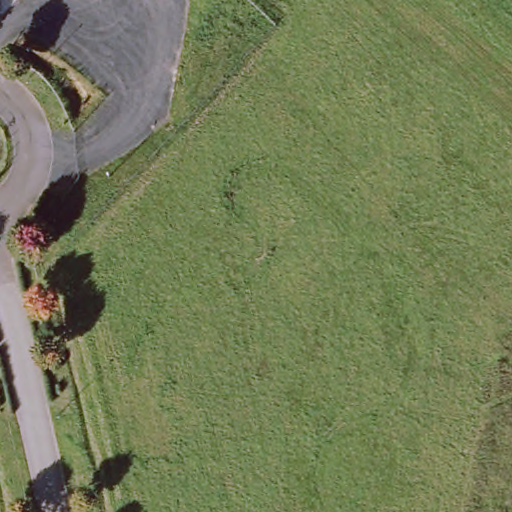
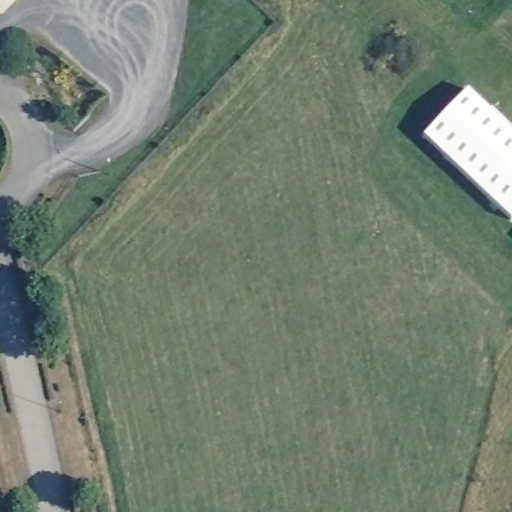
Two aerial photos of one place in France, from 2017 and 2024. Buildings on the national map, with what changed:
new [(442,157),(488,108),(512,131),(512,216),(509,219),(442,157)]

